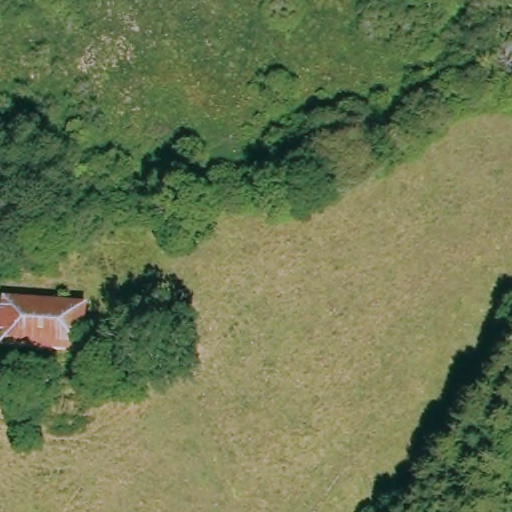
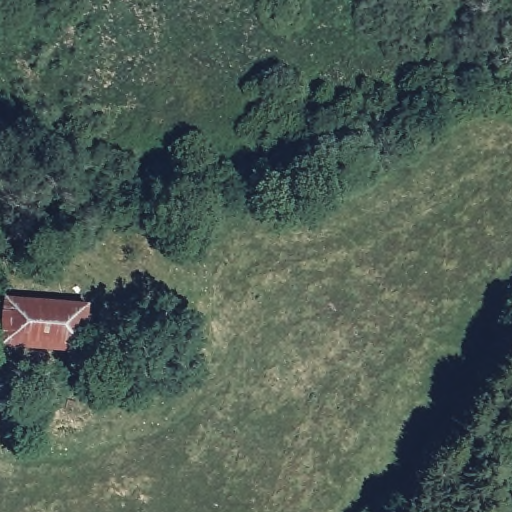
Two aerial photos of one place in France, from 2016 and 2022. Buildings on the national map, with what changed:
unchanged [(83,307),(81,350),(0,344),(0,300),(83,307)]

